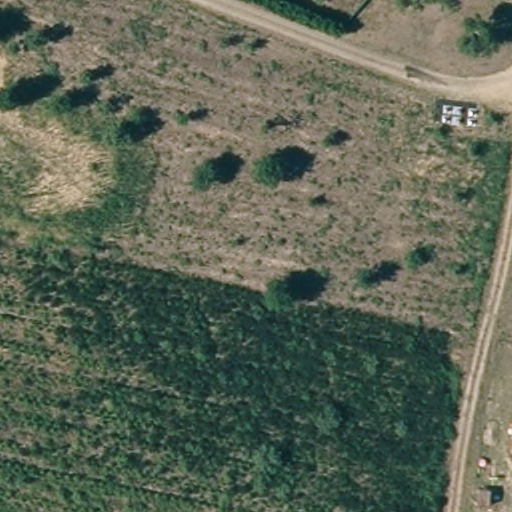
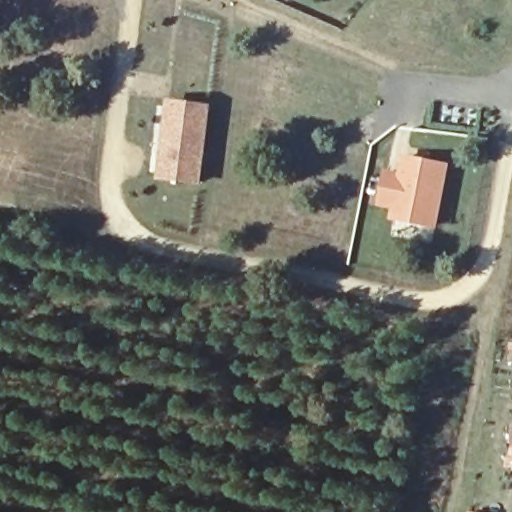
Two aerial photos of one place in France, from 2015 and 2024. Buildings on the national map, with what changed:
new [(173,101),(209,106),(200,181),(164,177),(173,101)]
new [(403,174),(406,159),(407,156),(428,160),(448,164),(436,224),(395,216),(397,205),(382,202),(388,171),(403,174)]

